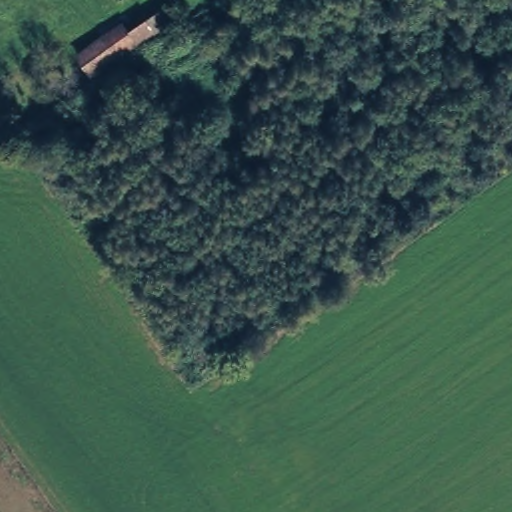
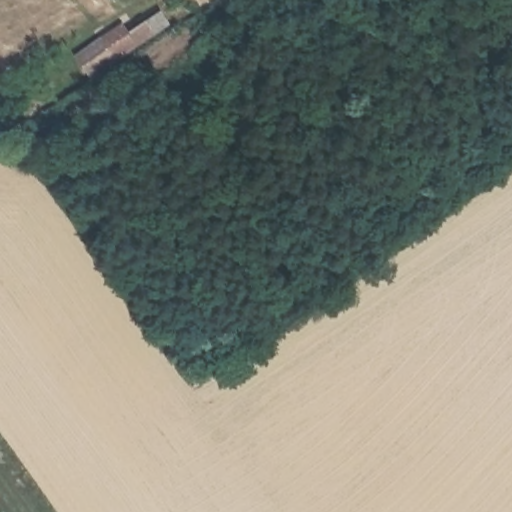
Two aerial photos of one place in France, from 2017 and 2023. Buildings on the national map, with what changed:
unchanged [(121,15),(128,26),(163,10),(170,23),(92,78),(76,54),(121,15)]

